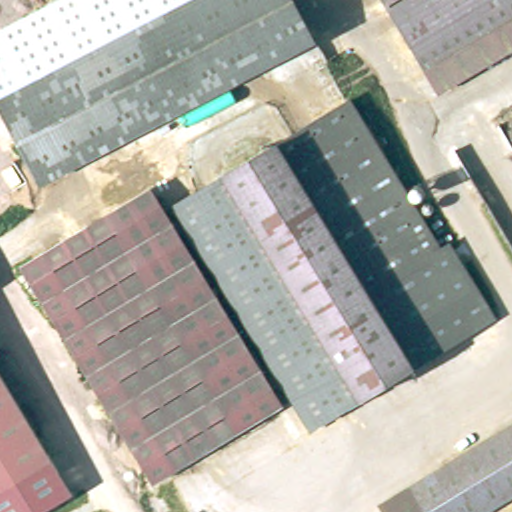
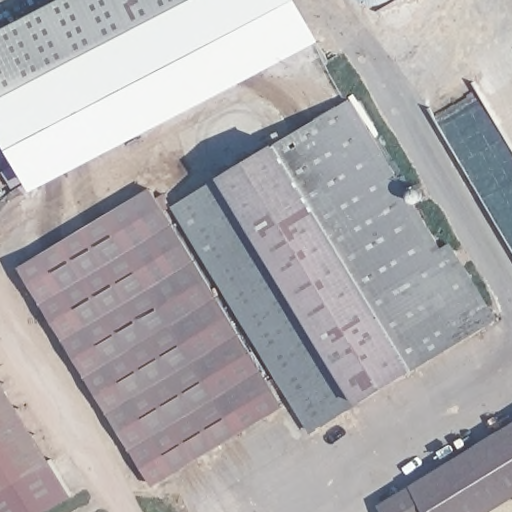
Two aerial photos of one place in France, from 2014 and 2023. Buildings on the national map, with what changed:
unchanged [(0,30),(57,0),(195,0),(0,106),(0,30)]
unchanged [(294,0),(318,41),(39,190),(0,119),(0,106),(195,0),(294,0)]
demolished [(428,70),(386,0),(512,0),(512,16),(428,70)]
unchanged [(354,101),(444,247),(452,242),(498,315),(314,429),(179,208),(354,101)]
unchanged [(154,189),(286,401),(157,482),(26,270),(154,189)]
unchanged [(0,495),(0,370),(56,462),(0,495)]
unchanged [(488,512),(388,512),(383,504),(512,422),(512,497),(488,512)]
unchanged [(43,512),(0,512),(0,495),(56,462),(73,494),(43,512)]

